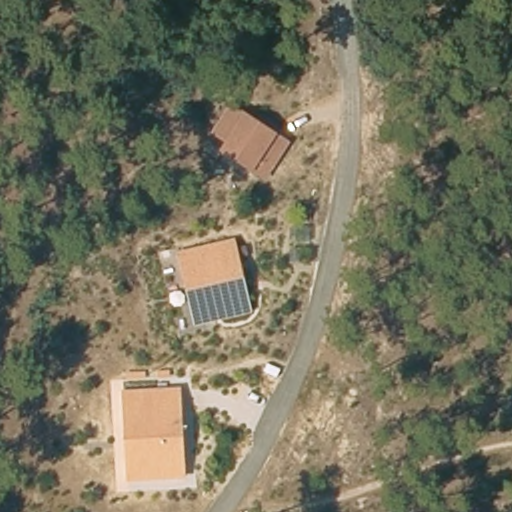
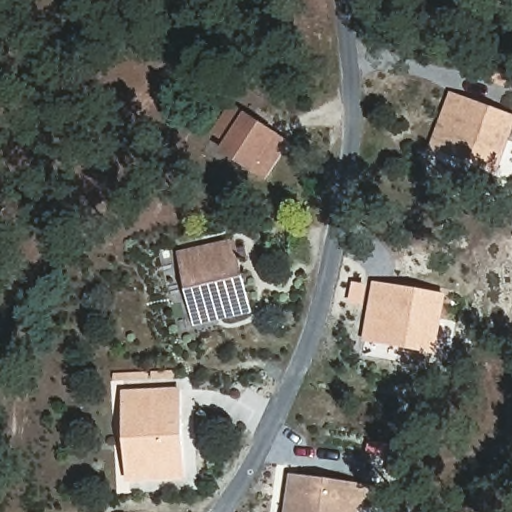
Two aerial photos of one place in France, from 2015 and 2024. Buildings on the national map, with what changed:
new [(512,115),(512,135),(496,174),(430,148),(451,93),(512,115)]
unchanged [(211,136),(230,105),(293,144),(272,175),(211,136)]
new [(40,156),(62,133),(104,174),(117,187),(98,206),(87,217),(75,206),(52,182),(59,175),(40,156)]
unchanged [(250,313),(190,325),(173,258),(181,256),(179,251),(234,239),(250,313)]
new [(371,281),(448,294),(437,355),(362,342),(371,281)]
unchanged [(184,478),(128,480),(125,388),(181,386),(184,478)]
new [(291,475),(378,486),(377,508),(360,507),(359,512),(286,512),(291,475)]

